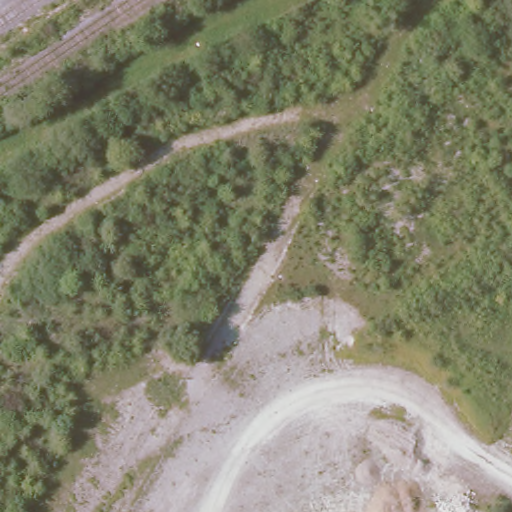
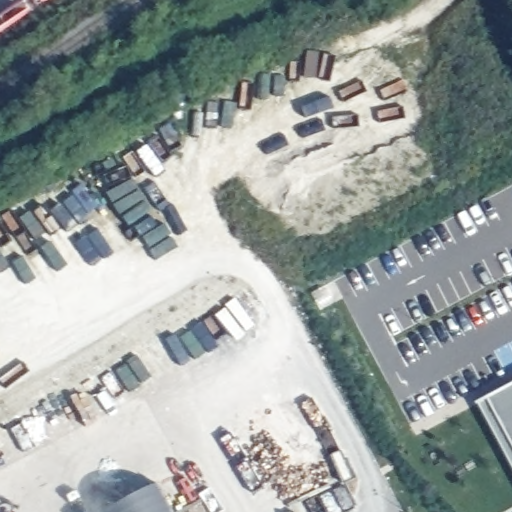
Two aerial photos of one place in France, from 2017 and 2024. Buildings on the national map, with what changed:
new [(487,399),(512,386),(512,456),(487,399)]
new [(167,512),(106,512),(152,486),(167,512)]

